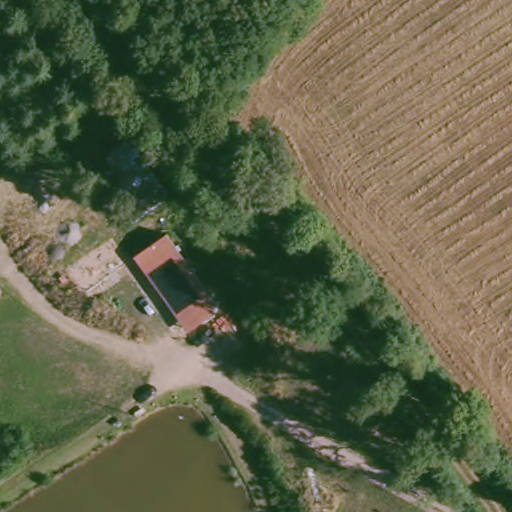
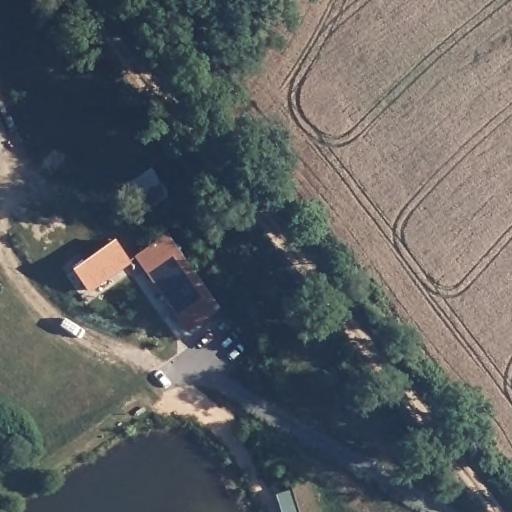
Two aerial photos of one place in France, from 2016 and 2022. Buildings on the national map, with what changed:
unchanged [(169,230),(221,305),(189,326),(138,252),(169,230)]
new [(88,289),(73,268),(114,240),(128,261),(88,289)]

